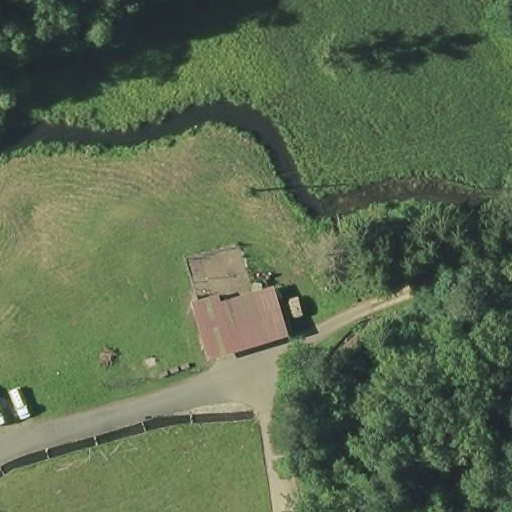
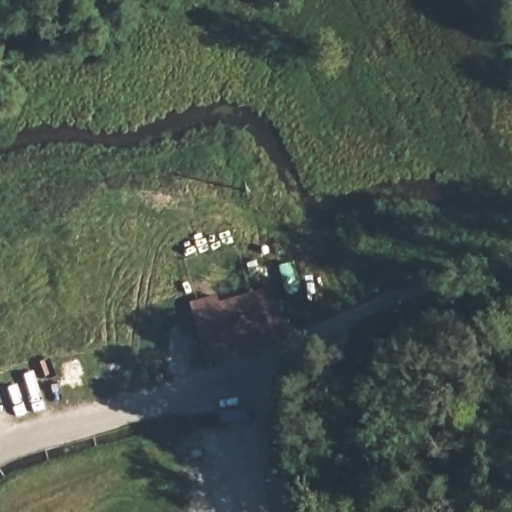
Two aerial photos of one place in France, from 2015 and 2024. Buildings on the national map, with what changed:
unchanged [(290,335),(207,354),(193,297),(219,290),(222,298),(272,284),(290,335)]

